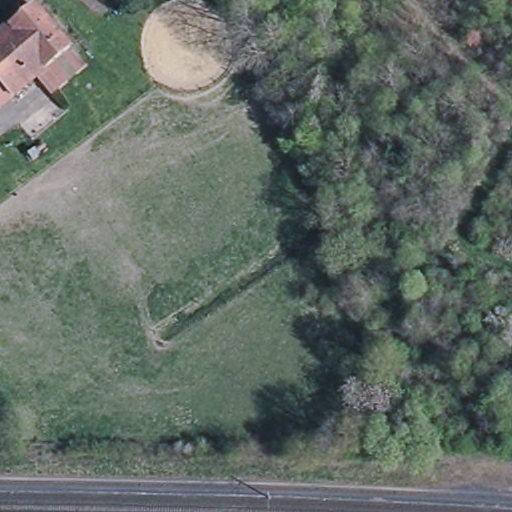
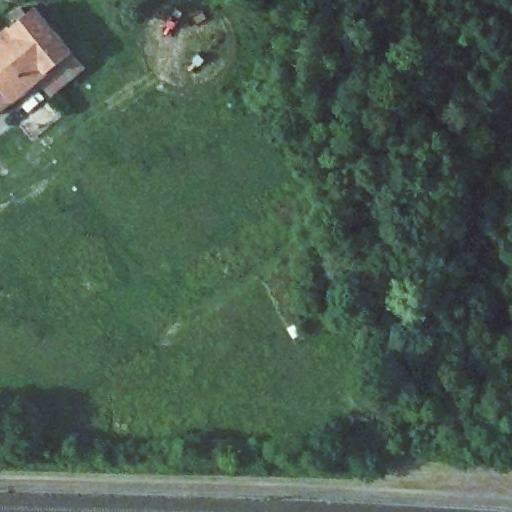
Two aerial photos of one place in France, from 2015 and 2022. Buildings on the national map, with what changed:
unchanged [(12,15),(19,10),(24,16),(31,10),(67,52),(81,67),(50,94),(36,79),(11,101),(0,110),(0,36),(17,21),(12,15)]

